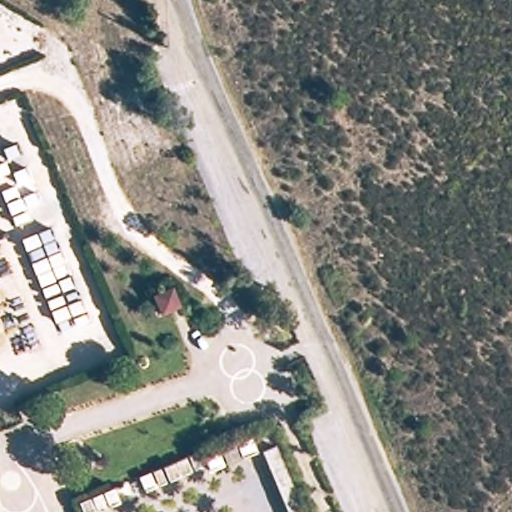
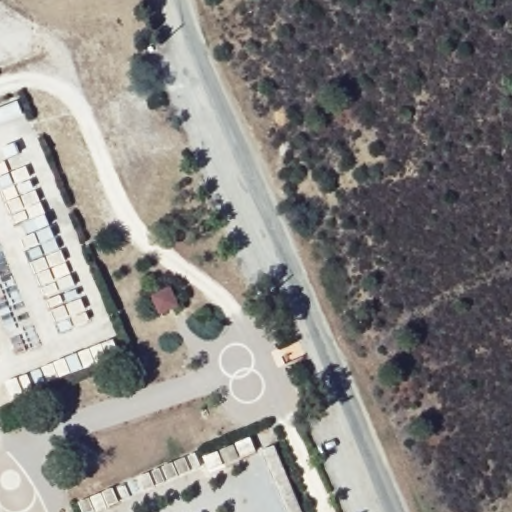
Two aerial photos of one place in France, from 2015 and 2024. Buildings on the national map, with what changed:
unchanged [(172,286),(182,307),(157,315),(151,294),(172,286)]

